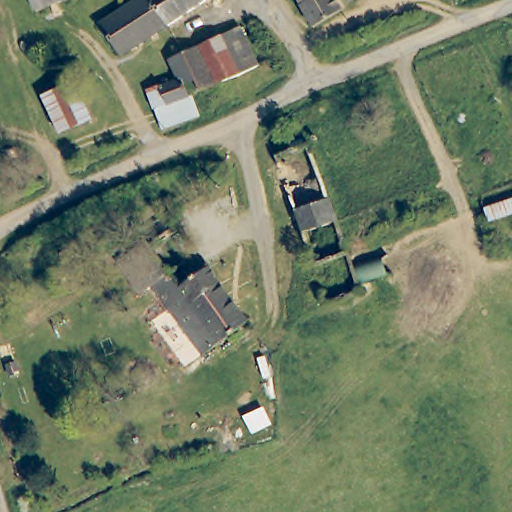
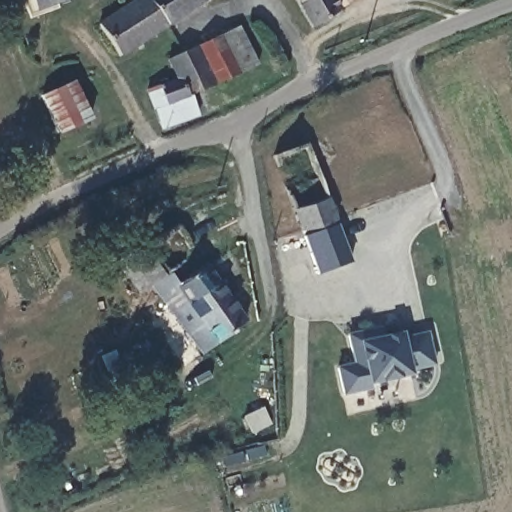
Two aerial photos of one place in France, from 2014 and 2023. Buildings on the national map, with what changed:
unchanged [(30,0),(54,0),(33,8),(30,0)]
unchanged [(201,0),(180,14),(159,27),(112,58),(92,28),(133,0),(201,0)]
unchanged [(314,25),(299,0),(335,0),(341,9),(314,25)]
unchanged [(167,59),(184,52),(199,44),(235,24),(255,64),(219,83),(202,91),(190,96),(199,116),(160,130),(142,89),(174,76),(167,59)]
unchanged [(72,80),(88,117),(56,130),(40,94),(72,80)]
unchanged [(310,254),(298,219),(290,198),(283,178),(317,166),(324,185),(332,208),(345,242),(350,258),(315,269),(310,254)]
unchanged [(179,221),(150,242),(145,235),(141,229),(170,209),(179,221)]
unchanged [(186,216),(196,229),(188,234),(179,222),(186,216)]
unchanged [(182,329),(170,314),(149,283),(167,270),(195,251),(204,264),(216,282),(225,295),(182,329)]
unchanged [(225,295),(243,321),(216,344),(212,339),(197,350),(182,329),(225,295)]
new [(381,325),(385,335),(403,332),(404,337),(428,332),(435,366),(411,371),(412,376),(371,384),(371,389),(342,396),(336,367),(354,363),(347,334),(381,325)]

